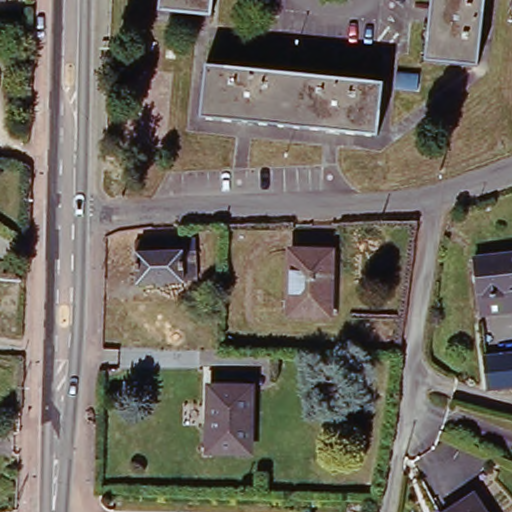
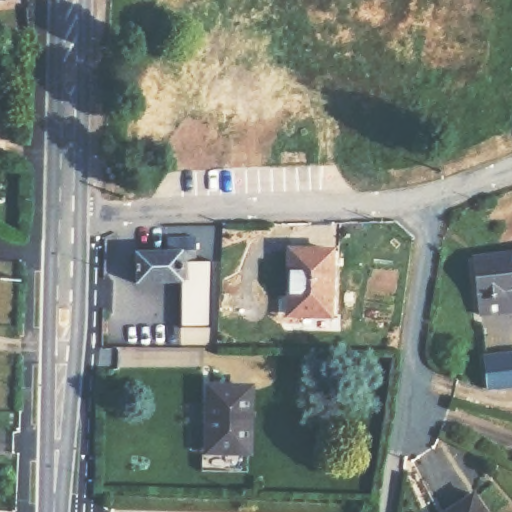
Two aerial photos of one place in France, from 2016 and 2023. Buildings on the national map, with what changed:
demolished [(156,8),(157,0),(216,0),(215,16),(156,8)]
demolished [(426,60),(433,0),(485,0),(477,66),(426,60)]
demolished [(382,82),(376,136),(200,115),(206,62),(382,82)]
unchanged [(185,275),(184,282),(135,281),(136,250),(136,236),(196,237),(196,250),(196,276),(185,275)]
unchanged [(340,316),(286,315),(287,251),(297,252),(317,252),(341,253),(340,316)]
unchanged [(512,312),(480,316),(480,315),(474,257),(512,254),(512,312)]
unchanged [(512,356),(512,388),(491,391),(488,358),(512,356)]
unchanged [(216,392),(255,392),(254,453),(214,452),(216,392)]
unchanged [(503,512),(441,512),(491,488),(503,512)]

